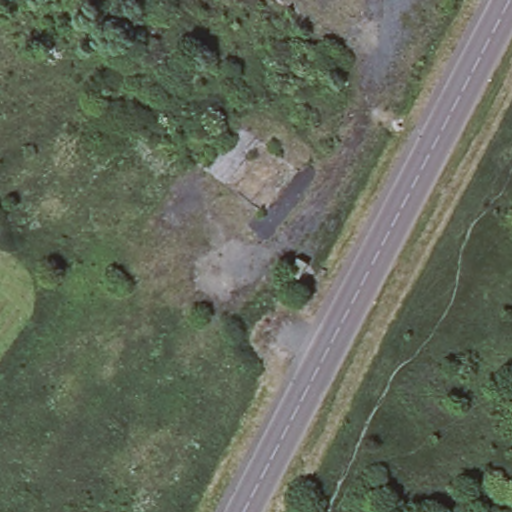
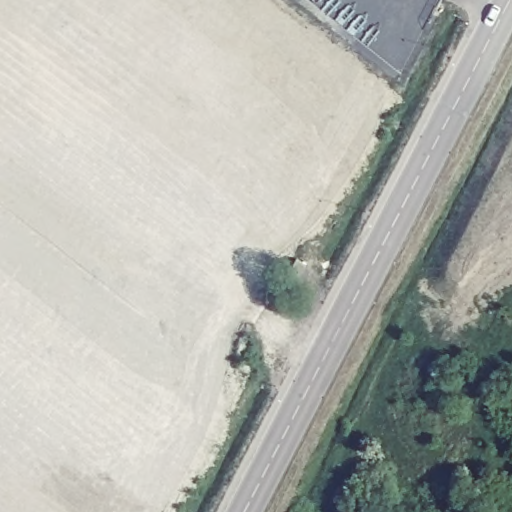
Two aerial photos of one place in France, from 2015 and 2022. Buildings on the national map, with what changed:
unchanged [(296,278),(288,273),(296,257),(306,263),(296,278)]

